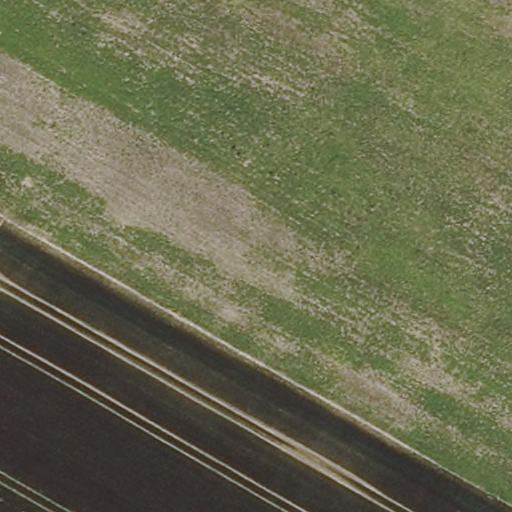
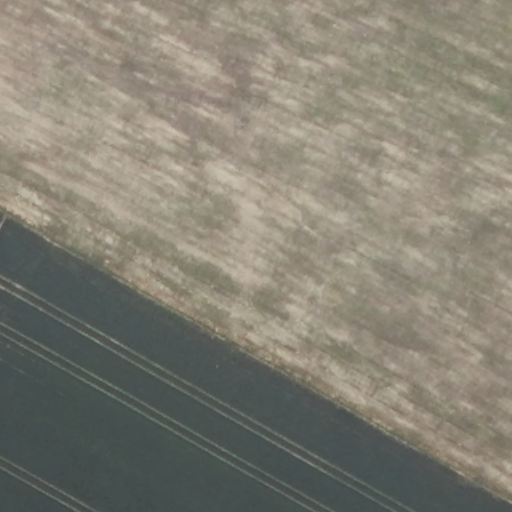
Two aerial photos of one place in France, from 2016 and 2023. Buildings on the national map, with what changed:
[]

